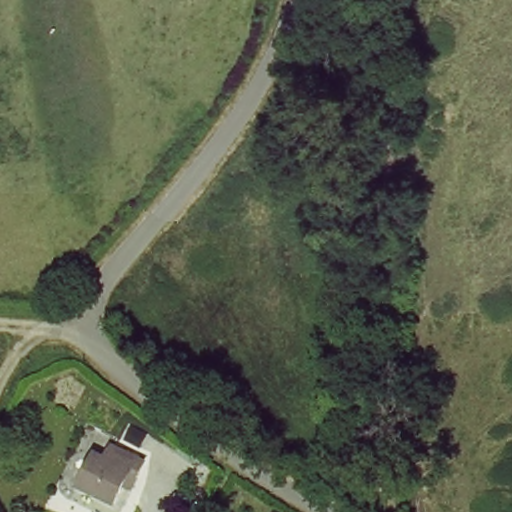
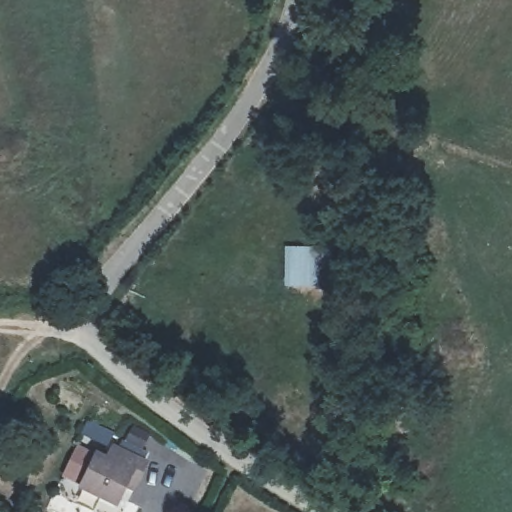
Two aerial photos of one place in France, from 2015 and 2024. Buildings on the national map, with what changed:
new [(285,286),(288,246),(315,248),(313,270),(324,271),(323,288),(285,286)]
unchanged [(107,458),(113,445),(154,461),(147,482),(136,476),(121,506),(81,486),(98,452),(107,458)]

